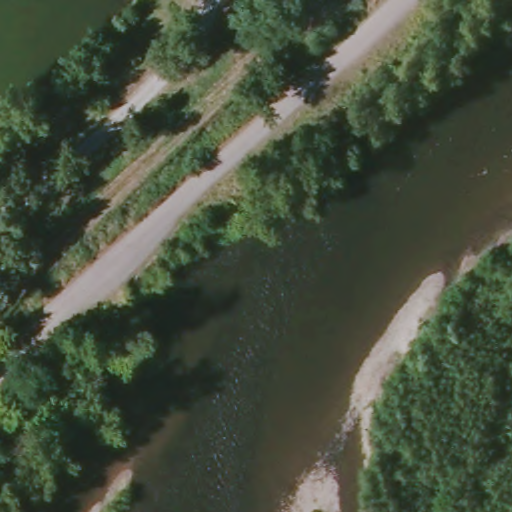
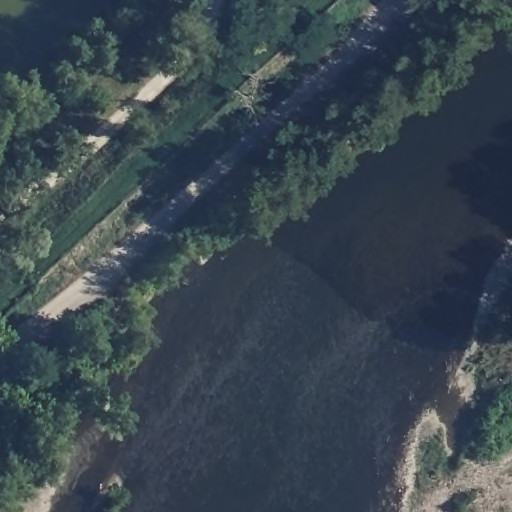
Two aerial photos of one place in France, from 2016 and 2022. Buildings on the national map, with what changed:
unchanged [(268,0),(280,0),(275,6),(268,0)]

